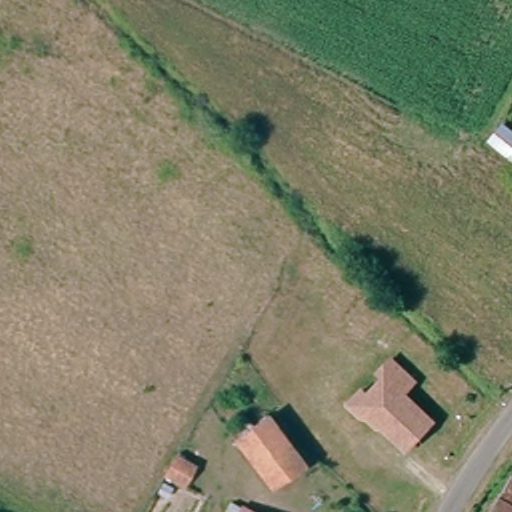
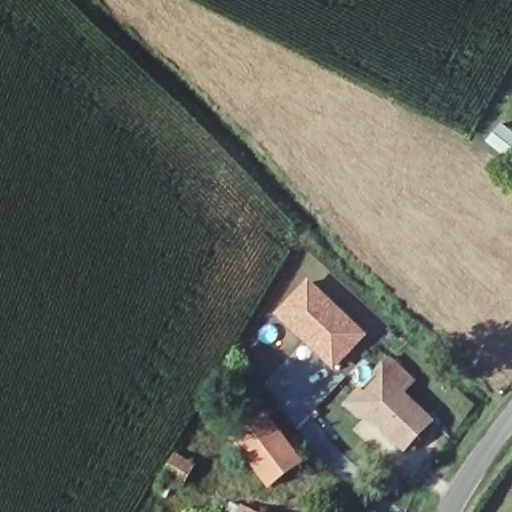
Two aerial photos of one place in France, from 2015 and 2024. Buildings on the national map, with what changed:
unchanged [(512,117),(512,147),(497,133),(512,117)]
new [(307,278),(368,335),(332,371),(272,313),(307,278)]
unchanged [(351,403),(363,391),(368,396),(387,376),(382,371),(394,358),(418,381),(406,392),(436,421),(408,447),(369,410),(363,415),(351,403)]
unchanged [(275,415),(312,461),(301,470),(281,487),(244,440),(275,415)]
unchanged [(187,457),(201,470),(190,482),(175,469),(187,457)]
demolished [(512,489),(512,512),(500,512),(512,489)]
unchanged [(245,503),(260,511),(263,512),(240,512),(245,503)]

